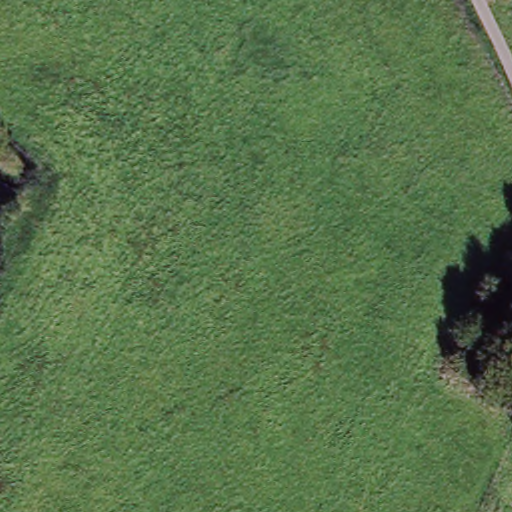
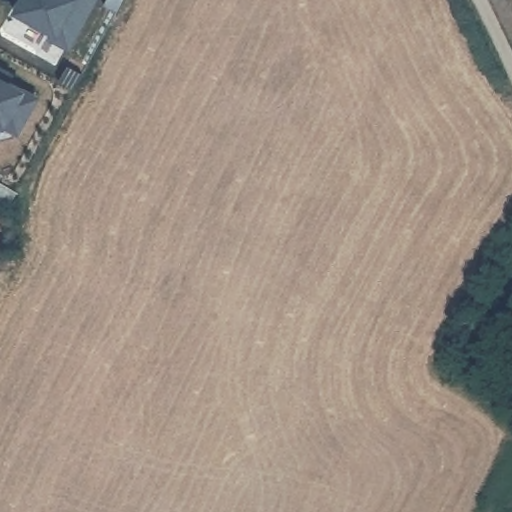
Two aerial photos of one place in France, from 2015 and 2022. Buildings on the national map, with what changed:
new [(16,0),(91,0),(66,47),(47,37),(51,31),(12,9),(16,0)]
new [(5,79),(34,95),(15,130),(0,121),(0,67),(8,72),(5,79)]

